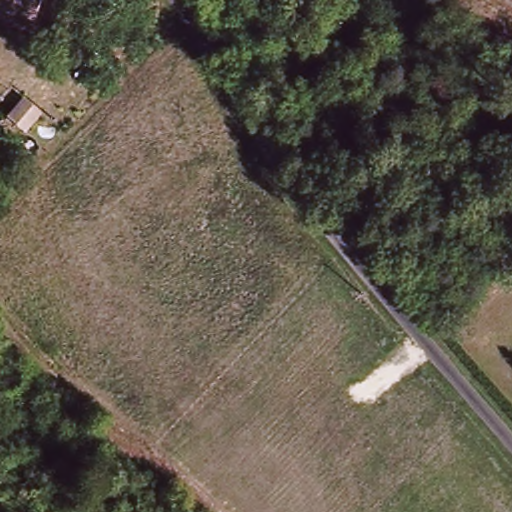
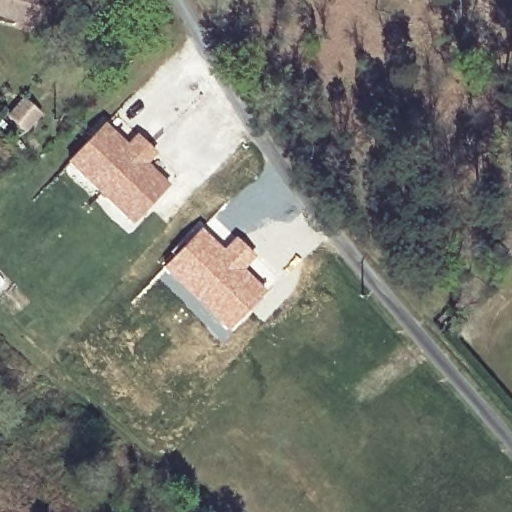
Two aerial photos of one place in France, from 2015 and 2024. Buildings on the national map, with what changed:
unchanged [(0,16),(0,0),(39,0),(30,26),(0,16)]
unchanged [(41,114),(24,134),(5,118),(22,98),(41,114)]
new [(101,125),(126,147),(136,135),(154,151),(144,163),(168,185),(135,222),(68,162),(101,125)]
new [(200,225),(223,247),(235,234),(257,254),(244,267),(267,290),(227,331),(195,302),(161,267),(200,225)]

